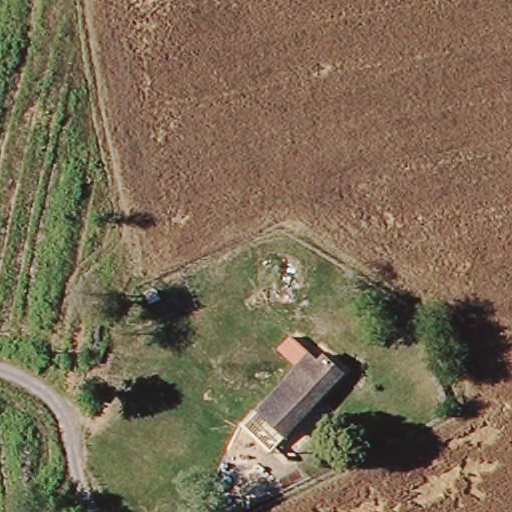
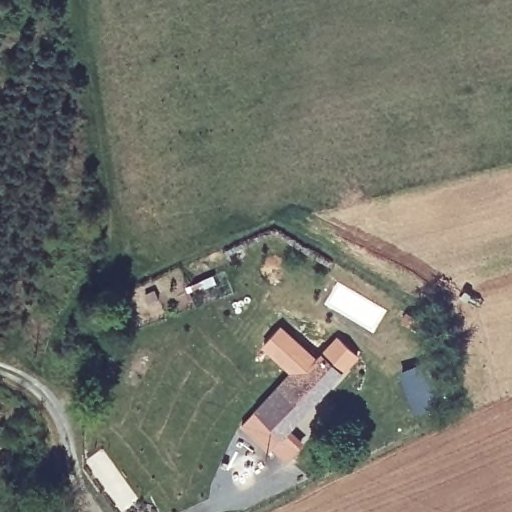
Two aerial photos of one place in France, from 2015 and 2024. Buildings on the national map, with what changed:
unchanged [(279,353),(288,343),(315,368),(327,357),(343,375),(285,434),(274,445),(266,437),(272,430),(255,413),(296,370),(279,353)]

